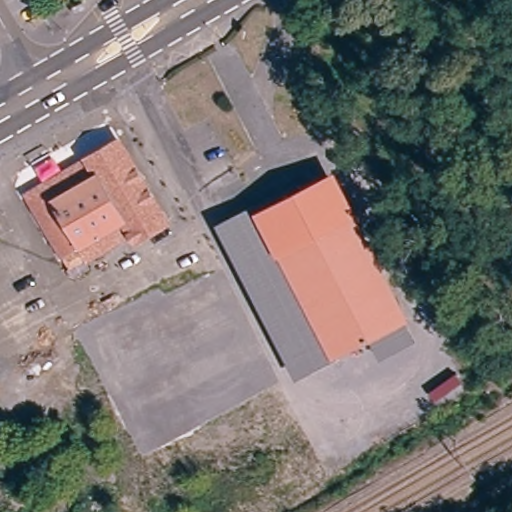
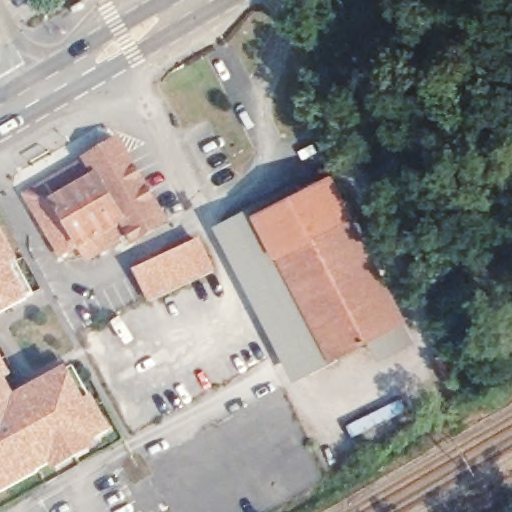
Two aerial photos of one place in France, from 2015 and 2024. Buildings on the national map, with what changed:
unchanged [(139,239),(135,232),(98,254),(89,251),(82,240),(65,251),(31,194),(123,139),(171,220),(139,239)]
unchanged [(297,201),(336,181),(407,318),(340,353),(314,367),(241,230),(297,201)]
unchanged [(297,201),(241,230),(314,367),(340,353),(344,360),(316,375),(310,378),(231,227),(237,223),(293,194),(297,201)]
new [(6,234),(23,263),(42,298),(34,302),(0,321),(0,238),(6,234)]
new [(218,270),(151,301),(134,270),(202,239),(218,270)]
demolished [(198,292),(179,303),(171,289),(190,278),(198,292)]
demolished [(118,339),(113,343),(108,334),(114,331),(111,326),(120,322),(161,299),(179,331),(137,354),(128,358),(118,339)]
new [(9,382),(21,404),(72,375),(80,370),(99,405),(115,434),(90,448),(68,460),(44,474),(45,476),(7,497),(0,501),(0,366),(9,382)]
demolished [(218,381),(227,400),(205,411),(195,394),(218,381)]

